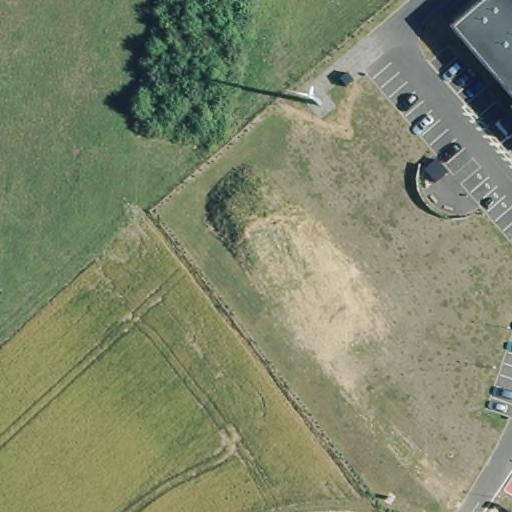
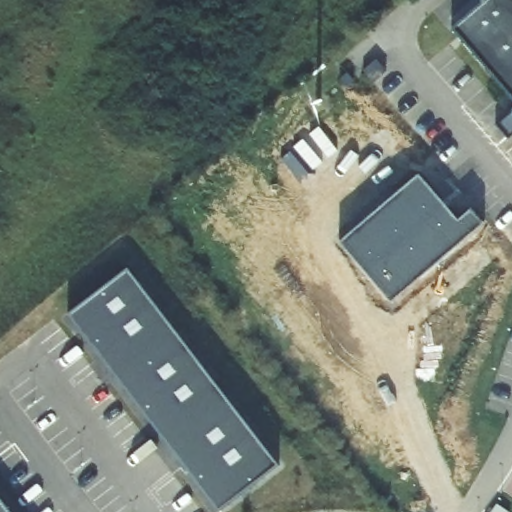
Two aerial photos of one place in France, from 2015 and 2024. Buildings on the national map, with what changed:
unchanged [(512,0),(512,95),(455,28),(488,0),(512,0)]
new [(457,221),(471,209),(483,222),(392,301),(341,242),(420,174),(457,221)]
new [(276,466),(220,509),(68,314),(127,270),(276,466)]
new [(0,503),(7,512),(0,512),(0,503)]
new [(505,512),(492,512),(496,506),(505,512)]

